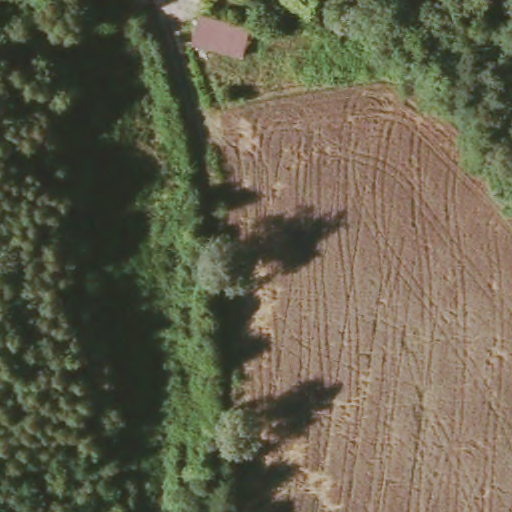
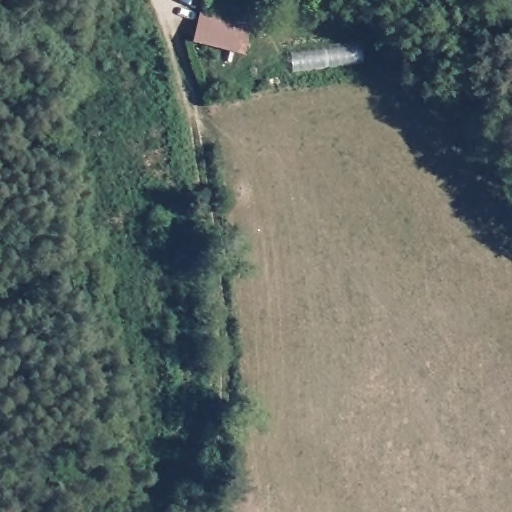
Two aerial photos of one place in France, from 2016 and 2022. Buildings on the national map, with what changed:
unchanged [(240,56),(189,44),(196,13),(248,29),(240,56)]

